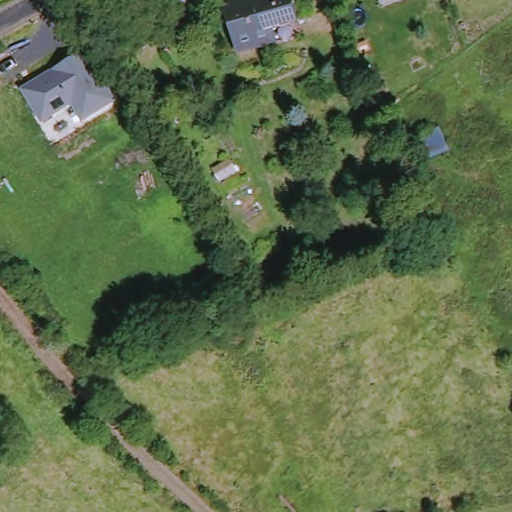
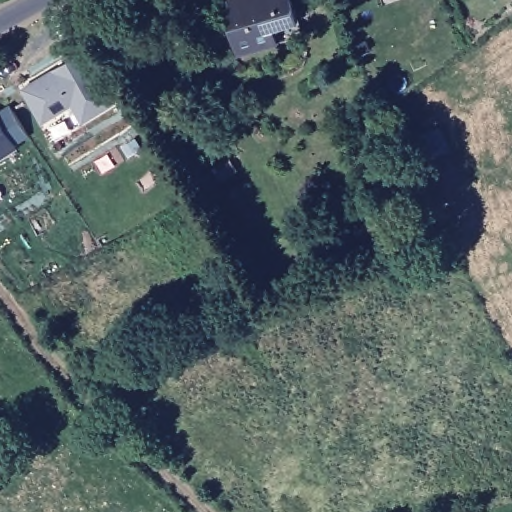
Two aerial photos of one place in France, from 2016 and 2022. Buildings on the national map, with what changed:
unchanged [(277,29),(280,41),(247,50),(237,16),(242,11),(238,0),(290,0),(297,23),(277,29)]
unchanged [(22,90),(89,53),(117,103),(85,123),(74,106),(44,124),(22,90)]
new [(10,106),(28,136),(15,143),(18,148),(0,163),(0,111),(10,106)]

